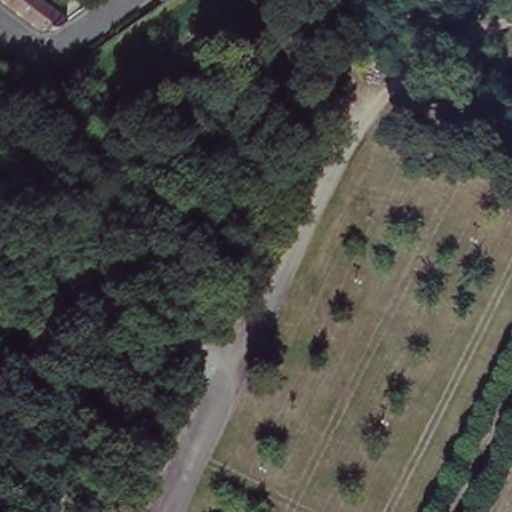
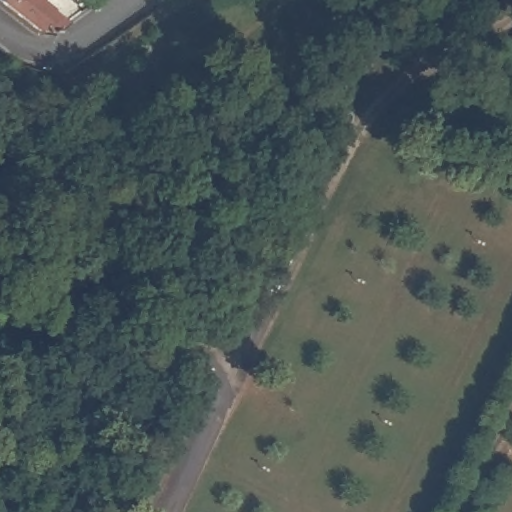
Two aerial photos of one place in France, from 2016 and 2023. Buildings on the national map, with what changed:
unchanged [(71,17),(62,24),(46,27),(12,0),(50,0),(71,17)]

